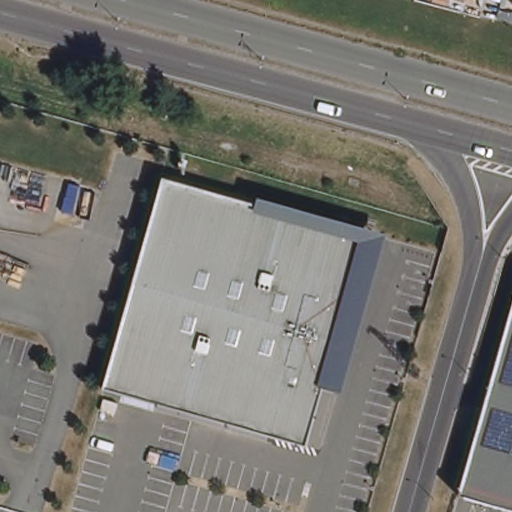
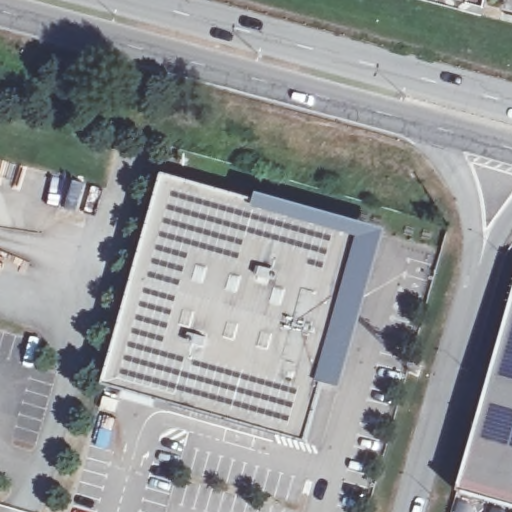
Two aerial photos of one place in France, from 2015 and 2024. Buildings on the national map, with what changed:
unchanged [(159,170),(362,228),(301,438),(98,380),(159,170)]
unchanged [(512,306),(512,508),(457,493),(512,306)]

